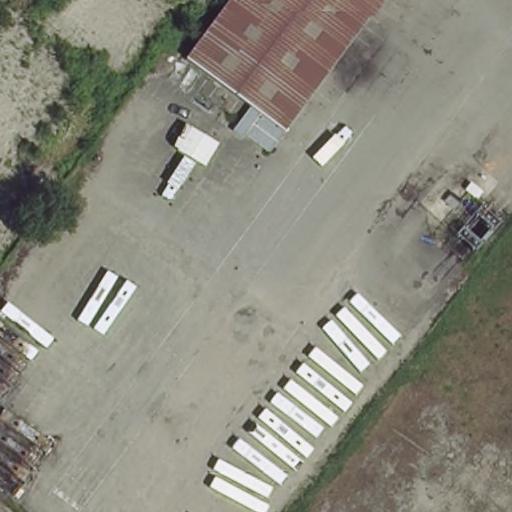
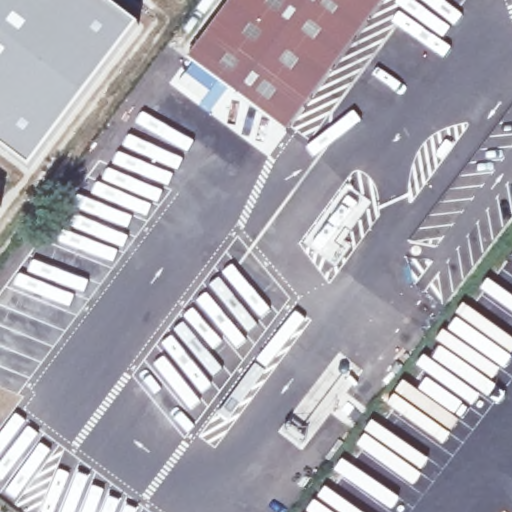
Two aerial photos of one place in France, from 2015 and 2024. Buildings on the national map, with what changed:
new [(85,92),(30,171),(0,149),(0,0),(106,0),(138,25),(85,92)]
unchanged [(188,61),(234,0),(388,0),(286,136),(188,61)]
demolished [(7,144),(8,145),(10,147),(10,149),(10,151),(9,152),(8,154),(7,155),(5,156),(3,157),(1,157),(0,157),(0,142),(2,141),(4,142),(6,142),(7,144)]
new [(0,215),(0,209),(3,211),(0,215)]

